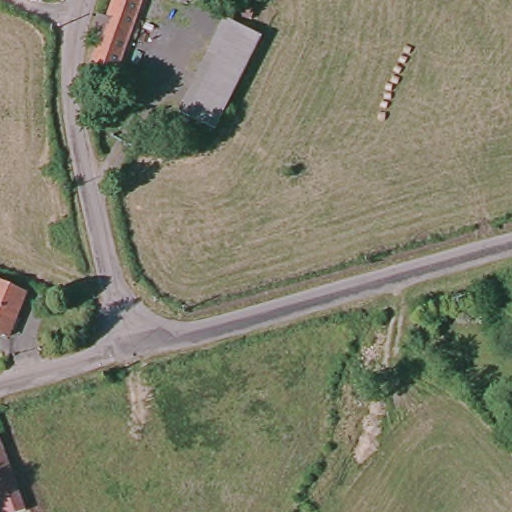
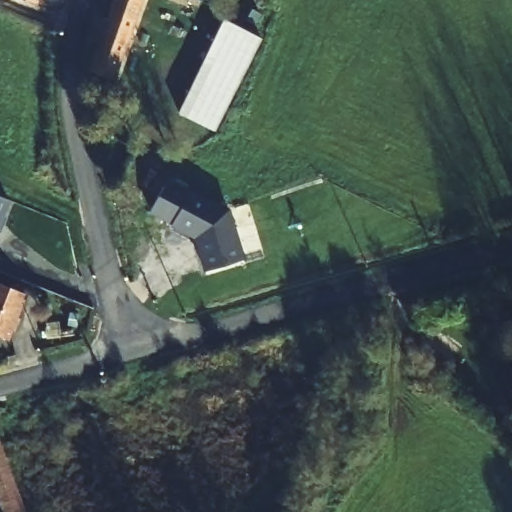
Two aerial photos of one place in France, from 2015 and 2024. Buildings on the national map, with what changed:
unchanged [(18,0),(36,0),(33,6),(18,0)]
unchanged [(85,71),(95,41),(85,38),(93,13),(102,16),(108,0),(137,0),(109,79),(85,71)]
unchanged [(170,0),(185,0),(183,5),(170,0)]
unchanged [(199,0),(197,6),(185,0),(199,0)]
unchanged [(227,21),(248,31),(262,39),(217,132),(213,131),(197,123),(180,114),(227,21)]
new [(197,238),(171,224),(190,189),(228,209),(243,259),(205,271),(197,247),(195,237),(197,238)]
new [(2,218),(5,219),(0,230),(0,200),(8,204),(2,218)]
unchanged [(22,301),(4,340),(0,338),(0,289),(22,301)]
unchanged [(28,512),(5,512),(0,499),(0,443),(28,512)]

